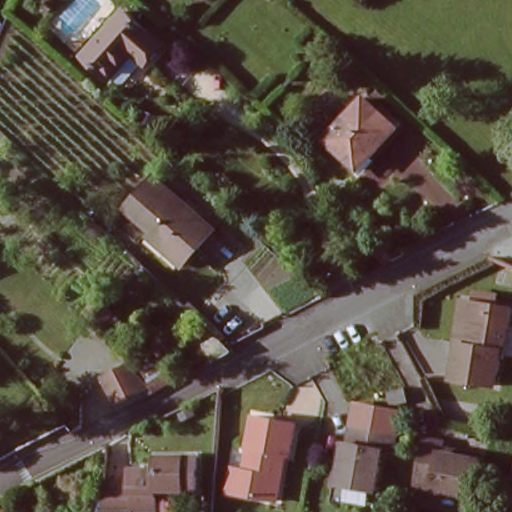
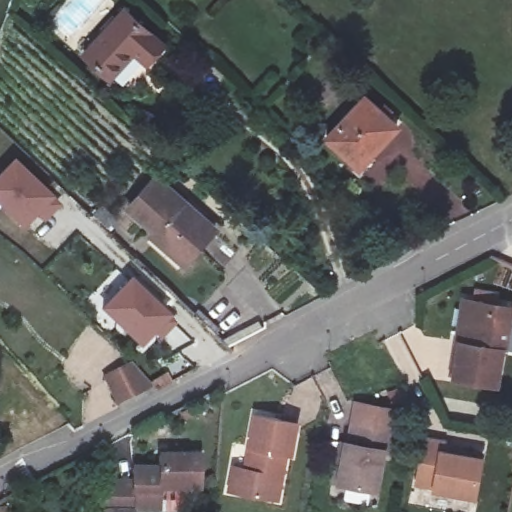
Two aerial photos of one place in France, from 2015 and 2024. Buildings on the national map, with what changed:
unchanged [(78,56),(120,12),(158,47),(138,66),(126,55),(102,79),(78,56)]
unchanged [(329,138),(367,96),(398,125),(360,166),(329,138)]
new [(13,159),(53,197),(60,206),(45,224),(36,216),(22,231),(0,209),(0,173),(13,159)]
unchanged [(166,251),(148,234),(152,230),(125,204),(154,174),(213,229),(187,257),(180,264),(166,251)]
unchanged [(395,269),(375,247),(386,237),(392,243),(410,261),(395,269)]
new [(100,310),(130,279),(170,316),(177,324),(161,342),(153,335),(140,349),(100,310)]
unchanged [(496,391),(448,383),(455,342),(452,341),(458,297),(468,299),(508,305),(496,391)]
demolished [(106,329),(86,313),(99,298),(120,314),(106,329)]
unchanged [(105,381),(135,355),(166,386),(128,406),(105,381)]
unchanged [(262,501),(227,495),(231,470),(243,472),(252,418),(296,425),(291,458),(284,457),(276,503),(262,501)]
unchanged [(332,451),(340,453),(340,447),(343,447),(346,429),(392,438),(388,457),(378,454),(371,491),(333,484),(326,483),(332,451)]
unchanged [(442,445),(440,454),(480,461),(472,499),(437,493),(438,485),(415,481),(423,442),(442,445)]
unchanged [(104,508),(105,481),(125,482),(125,468),(150,469),(152,455),(185,456),(182,496),(157,494),(156,512),(128,512),(128,510),(104,508)]

